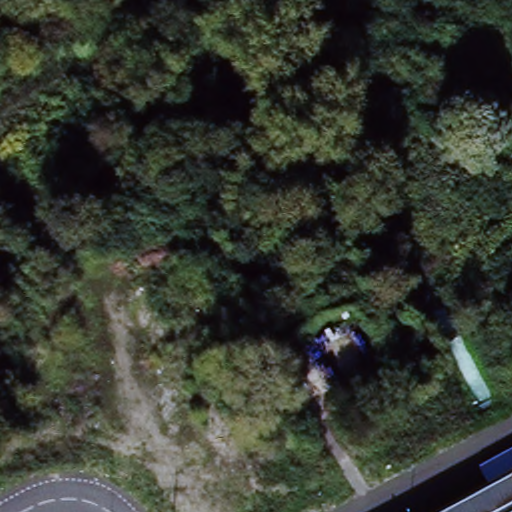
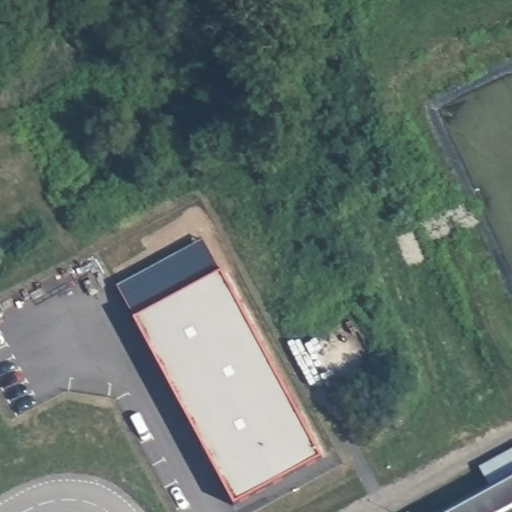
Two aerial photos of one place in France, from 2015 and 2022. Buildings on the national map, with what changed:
new [(135,321),(118,287),(204,242),(220,275),(321,459),(235,506),(135,321)]
unchanged [(512,473),(512,512),(441,512),(512,473)]

